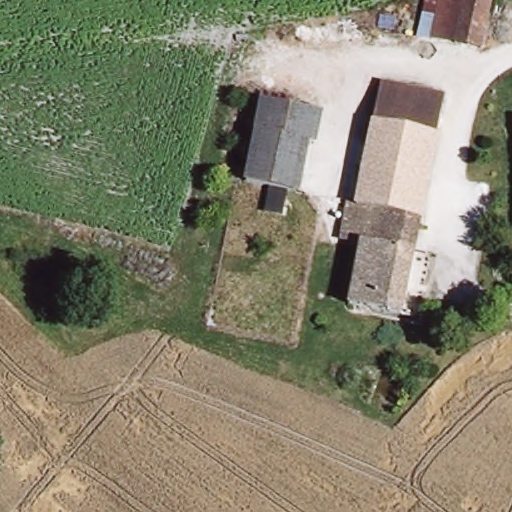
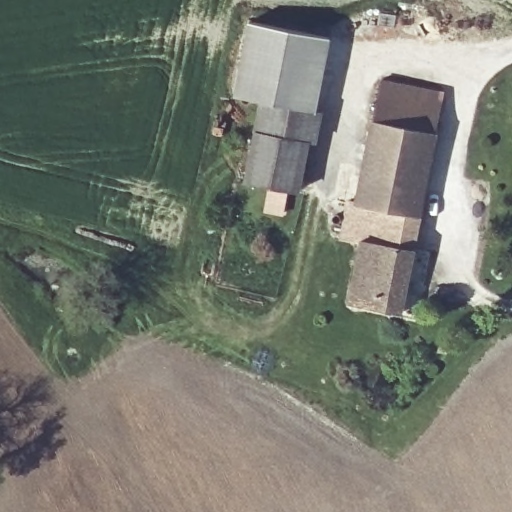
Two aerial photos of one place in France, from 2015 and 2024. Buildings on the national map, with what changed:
new [(249,21),(330,37),(315,108),(268,98),(235,91),(249,21)]
unchanged [(448,90),(437,140),(374,126),(385,76),(448,90)]
unchanged [(322,110),(317,142),(305,139),(262,130),(268,98),(322,110)]
unchanged [(405,281),(397,319),(348,308),(360,253),(340,249),(349,203),(357,205),(374,126),(437,140),(405,281)]
unchanged [(295,187),(252,178),(262,130),(305,139),(295,187)]

